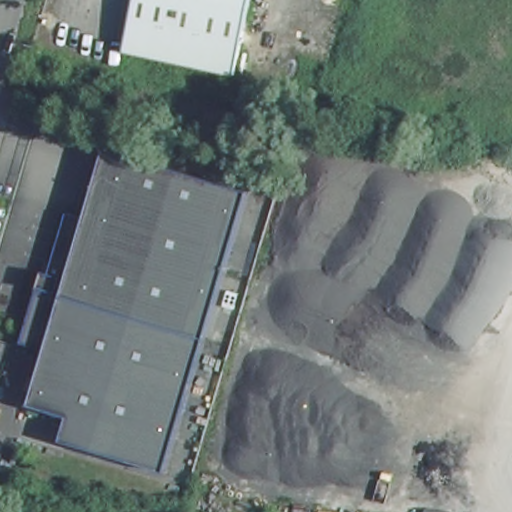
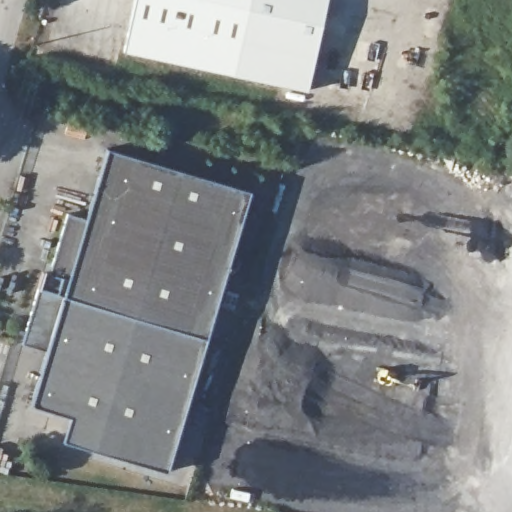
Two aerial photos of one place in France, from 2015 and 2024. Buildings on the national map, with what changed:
unchanged [(134,0),(245,0),(230,75),(123,52),(134,0)]
new [(230,75),(246,0),(325,0),(306,90),(230,75)]
unchanged [(251,189),(168,470),(68,437),(71,415),(35,404),(48,352),(28,344),(45,274),(53,274),(70,211),(90,216),(113,150),(251,189)]

